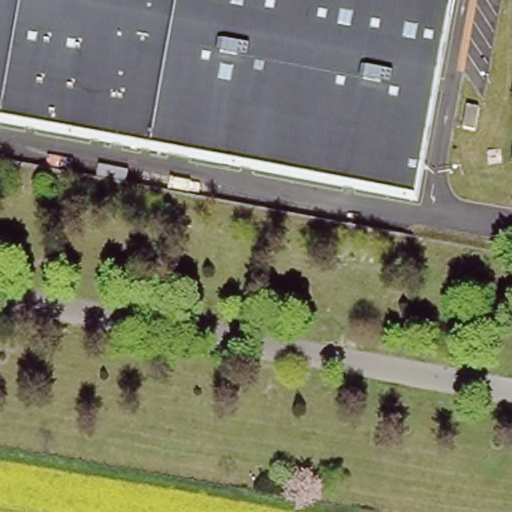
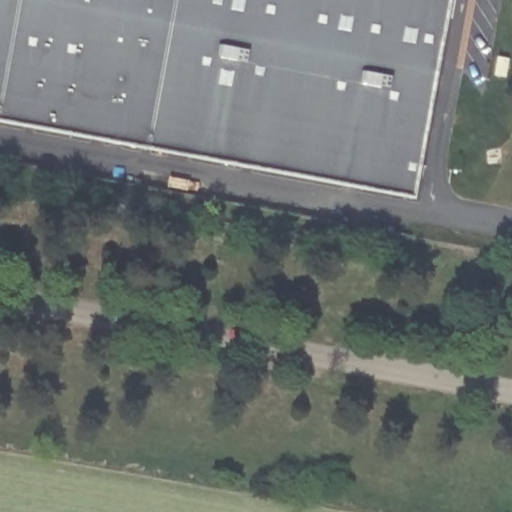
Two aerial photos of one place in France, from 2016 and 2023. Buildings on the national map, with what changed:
unchanged [(415,198),(0,121),(0,0),(451,0),(415,198)]

